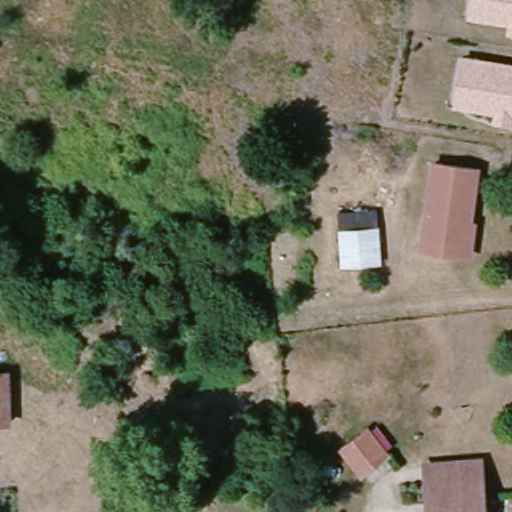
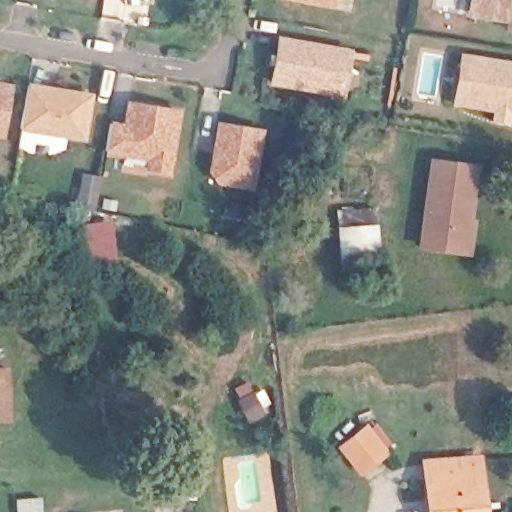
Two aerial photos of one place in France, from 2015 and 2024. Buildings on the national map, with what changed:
new [(342,0),(330,9),(285,0),(342,0)]
unchanged [(504,35),(505,25),(469,19),(472,0),(512,0),(512,36),(504,35)]
new [(354,49),(346,98),(270,86),(278,35),(354,49)]
unchanged [(512,63),(512,122),(511,127),(491,124),(492,113),(453,107),(465,55),(512,63)]
new [(5,140),(0,139),(0,81),(13,83),(5,140)]
new [(94,94),(85,142),(20,130),(29,82),(94,94)]
new [(184,110),(174,175),(145,170),(146,160),(105,153),(111,120),(124,122),(127,101),(184,110)]
new [(266,128),(255,193),(219,187),(209,170),(218,120),(266,128)]
unchanged [(481,169),(467,253),(424,246),(438,162),(481,169)]
unchanged [(385,263),(339,267),(337,210),(379,207),(385,263)]
demolished [(183,388),(179,350),(206,347),(209,362),(238,361),(237,386),(183,388)]
unchanged [(15,419),(0,419),(0,373),(11,373),(15,419)]
unchanged [(369,429),(389,458),(361,476),(339,448),(369,429)]
unchanged [(424,467),(434,465),(480,461),(486,512),(429,512),(428,504),(427,482),(424,467)]

